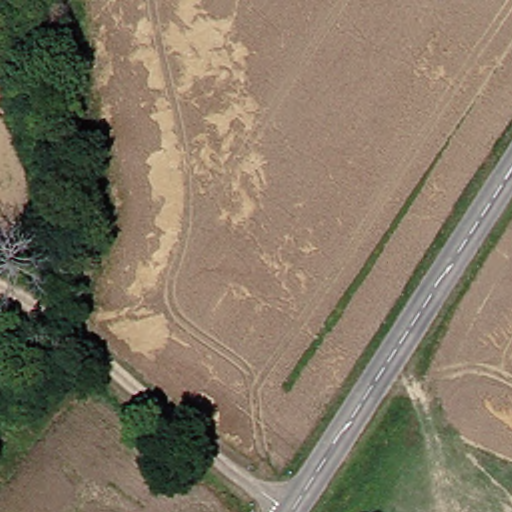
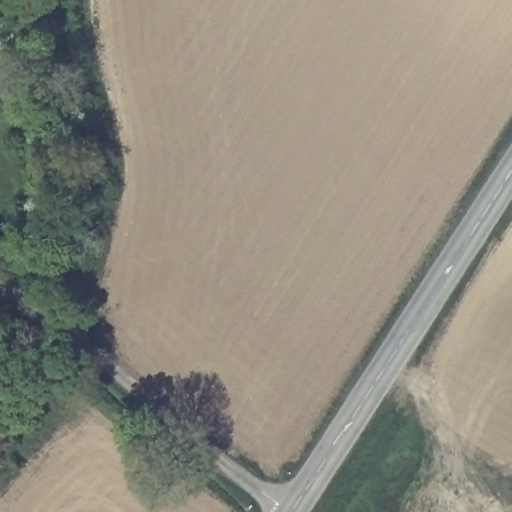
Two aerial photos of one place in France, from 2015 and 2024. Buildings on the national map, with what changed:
[]

